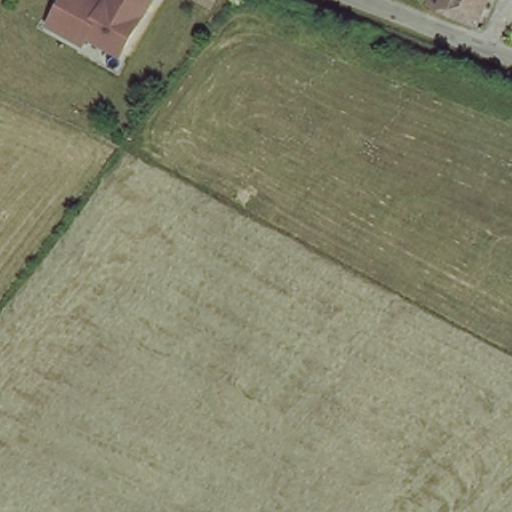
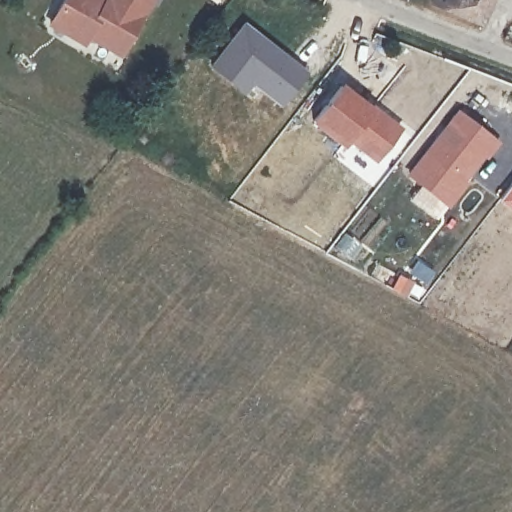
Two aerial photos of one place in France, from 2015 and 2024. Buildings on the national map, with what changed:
unchanged [(53,9),(58,0),(143,0),(114,50),(83,32),(78,40),(62,30),(46,21),(53,9)]
unchanged [(431,3),(432,0),(492,0),(481,25),(431,3)]
new [(243,18),(307,70),(291,94),(293,95),(283,108),(253,86),(246,97),(207,66),(243,18)]
new [(340,81),(403,123),(374,163),(345,141),(341,147),(310,123),(340,81)]
new [(456,107),(501,143),(480,168),(450,210),(405,175),(456,107)]
new [(499,200),(512,184),(512,211),(509,209),(499,200)]
new [(345,230),(364,247),(353,263),(329,248),(345,230)]

